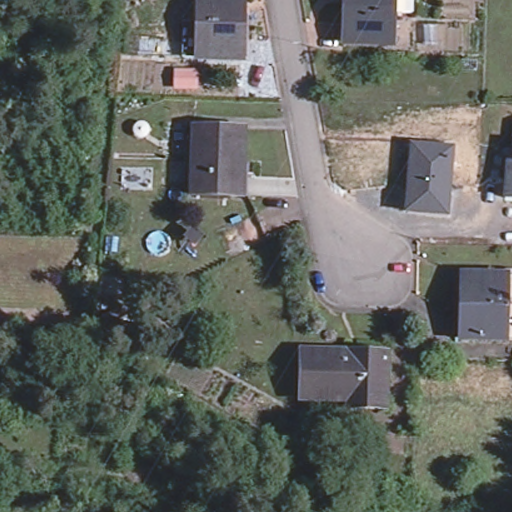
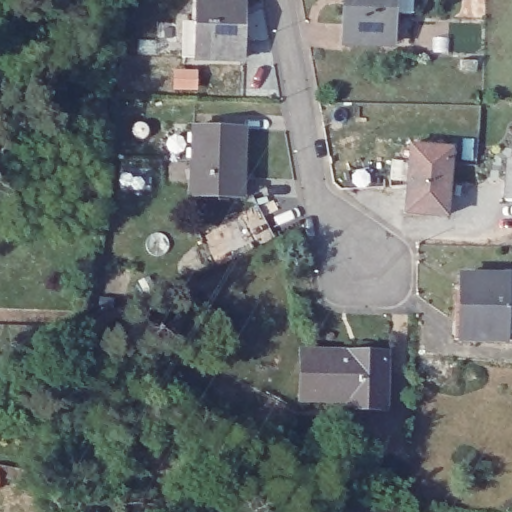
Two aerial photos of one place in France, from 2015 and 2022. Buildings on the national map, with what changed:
unchanged [(242,0),(243,58),(200,59),(199,0),(242,0)]
unchanged [(396,8),(396,39),(351,38),(342,38),(342,3),(343,0),(415,0),(415,9),(396,8)]
unchanged [(501,195),(504,158),(509,158),(512,121),(512,122),(512,196),(501,195)]
unchanged [(239,199),(194,198),(196,131),(252,132),(251,171),(251,199),(239,199)]
unchanged [(414,147),(452,151),(446,218),(407,214),(414,147)]
unchanged [(447,308),(454,308),(452,275),(501,275),(502,339),(447,339),(447,308)]
unchanged [(512,275),(512,338),(502,339),(501,275),(512,275)]
unchanged [(309,348),(391,353),(388,408),(360,407),(361,398),(306,394),(309,348)]
unchanged [(1,479),(1,491),(0,491),(0,468),(1,468),(1,479)]

